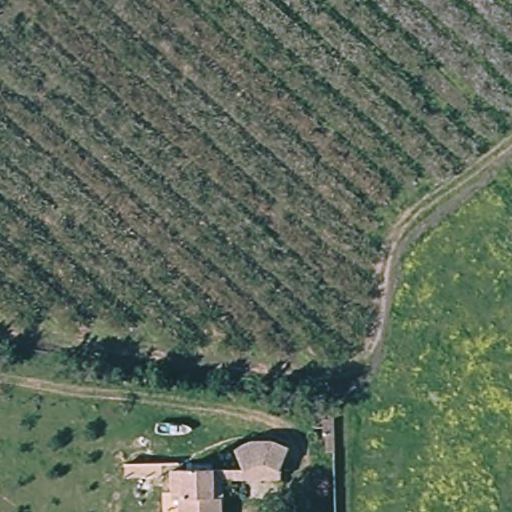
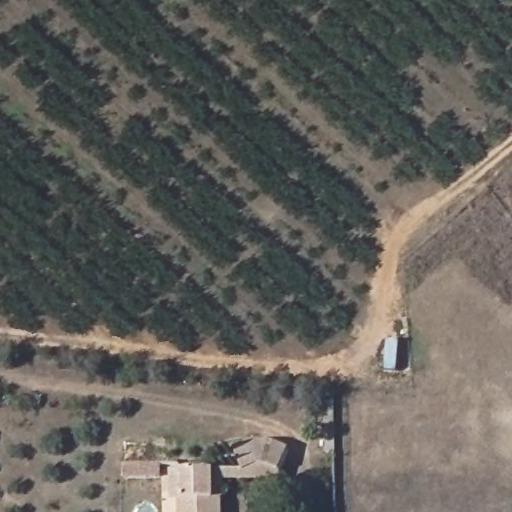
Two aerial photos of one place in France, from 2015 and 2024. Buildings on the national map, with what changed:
unchanged [(172,458),(172,465),(244,466),(234,444),(252,434),(270,434),(289,442),(281,466),(281,474),(223,474),(223,512),(180,512),(180,493),(171,493),(171,485),(164,485),(164,458),(172,458)]

